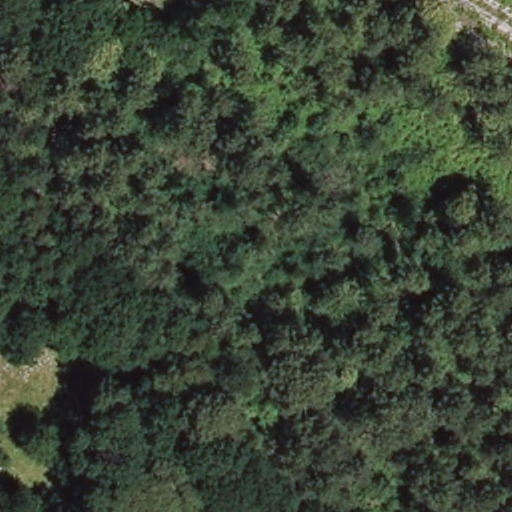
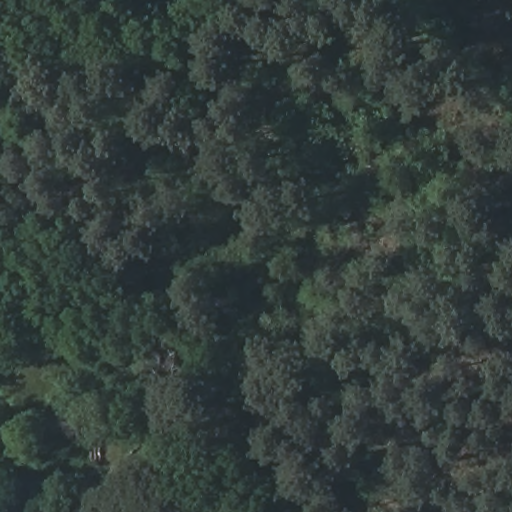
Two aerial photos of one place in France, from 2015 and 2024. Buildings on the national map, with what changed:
[]

